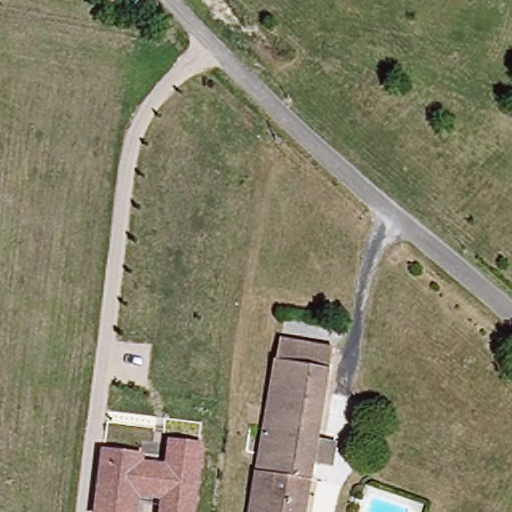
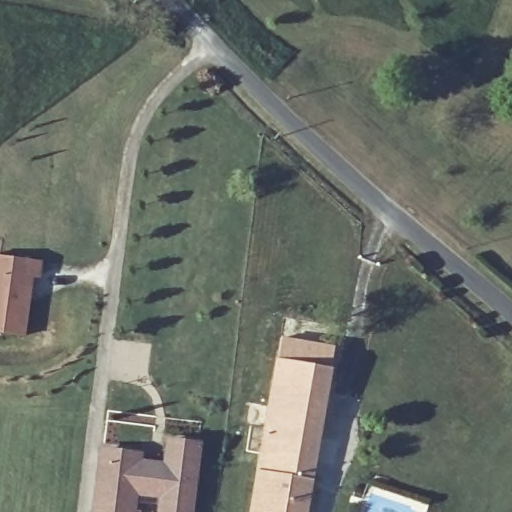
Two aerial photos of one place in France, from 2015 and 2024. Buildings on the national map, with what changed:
new [(42,261),(40,280),(34,280),(26,337),(0,333),(0,255),(42,261)]
unchanged [(332,466),(312,463),(305,512),(249,512),(276,338),(330,347),(317,432),(336,436),(332,466)]
unchanged [(143,453),(143,461),(164,463),(167,437),(203,442),(195,512),(157,512),(158,500),(138,497),(136,512),(92,512),(100,447),(143,453)]

